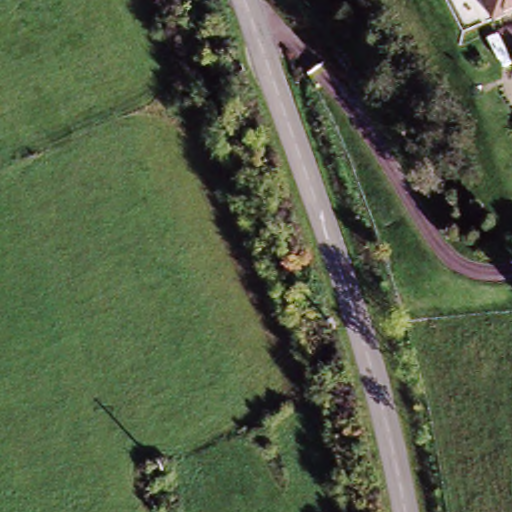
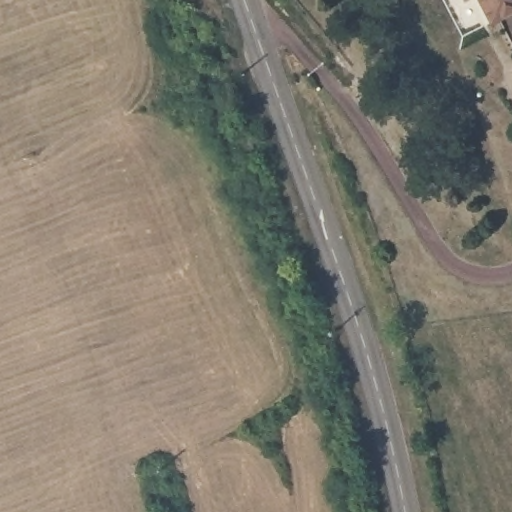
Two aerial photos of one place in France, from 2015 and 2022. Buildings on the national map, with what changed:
unchanged [(477,0),(512,0),(512,11),(485,20),(477,0)]

